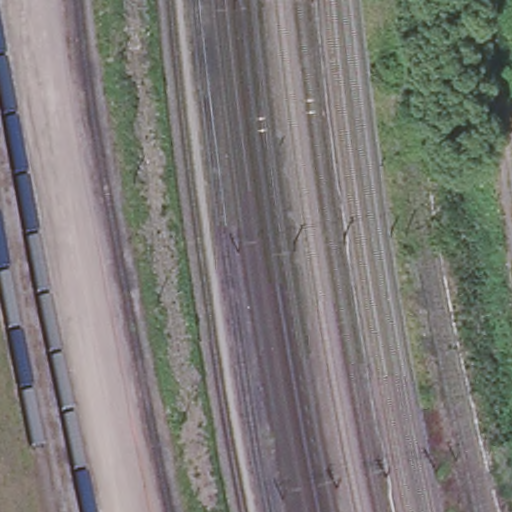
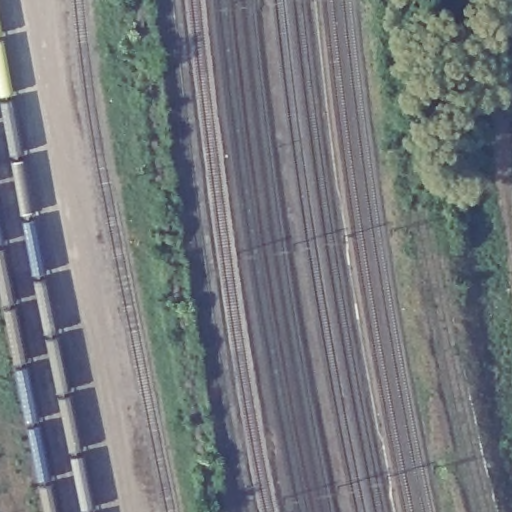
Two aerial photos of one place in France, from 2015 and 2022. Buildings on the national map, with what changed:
unchanged [(0,458),(0,451),(2,457),(0,458)]

